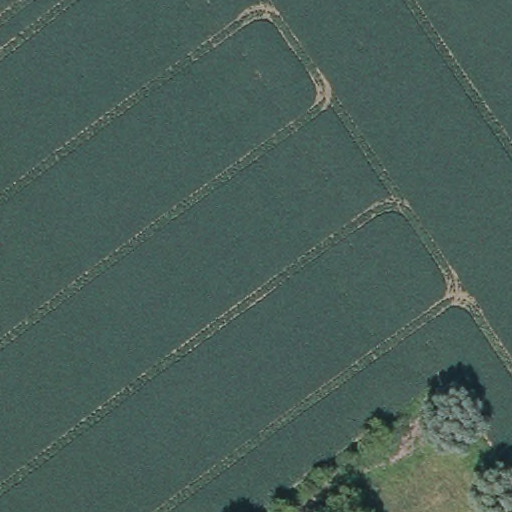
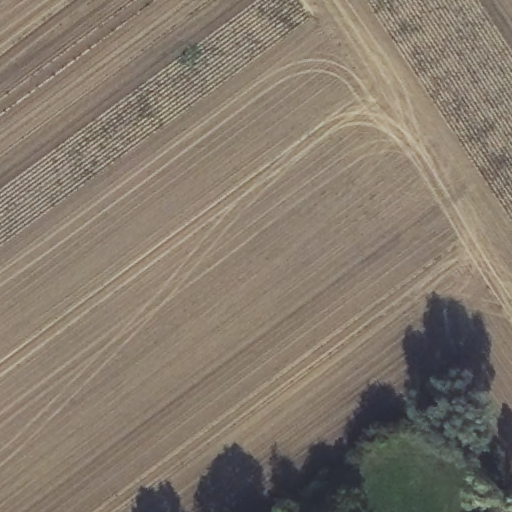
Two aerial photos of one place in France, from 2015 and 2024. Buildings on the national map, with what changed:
[]

